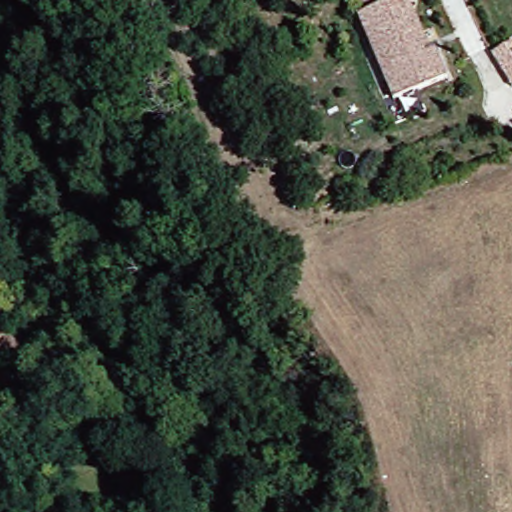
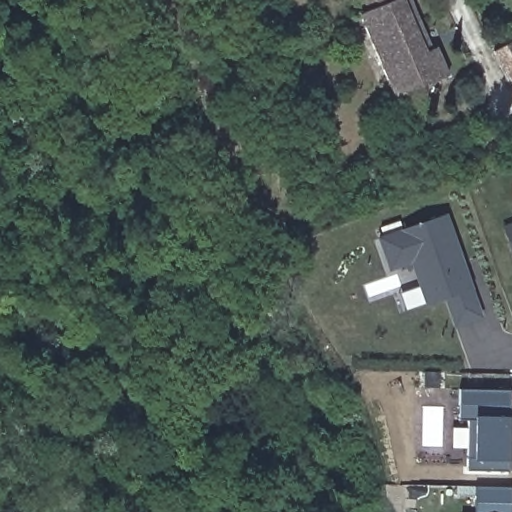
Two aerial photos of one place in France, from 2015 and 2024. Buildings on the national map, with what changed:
unchanged [(422,50),(427,48),(437,77),(383,97),(352,12),(371,5),(369,0),(404,0),(422,50)]
new [(512,39),(512,81),(492,51),(512,39)]
new [(413,260),(391,267),(380,236),(447,214),(457,244),(472,286),(482,315),(456,324),(446,295),(427,302),(421,283),(413,261),(413,260)]
new [(512,224),(512,256),(502,229),(512,224)]
new [(505,470),(468,469),(469,419),(459,418),(460,387),(512,388),(510,458),(510,470),(505,470)]
new [(512,487),(512,512),(477,512),(477,486),(512,487)]

